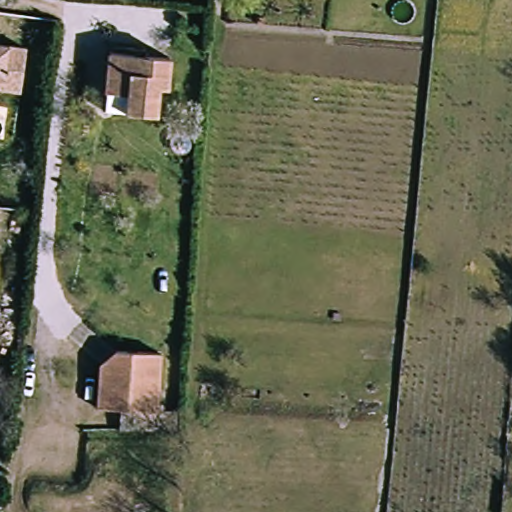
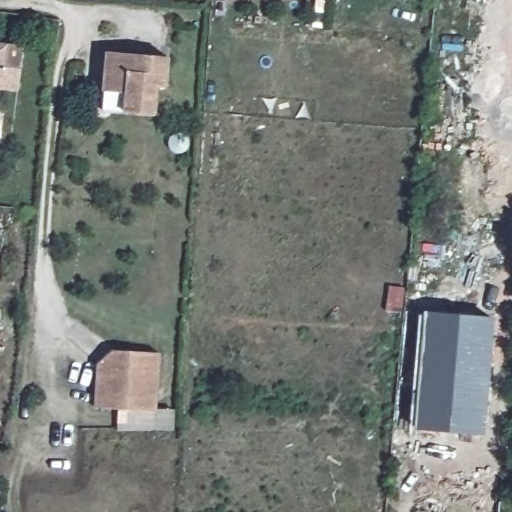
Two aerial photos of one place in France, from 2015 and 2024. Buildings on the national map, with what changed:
unchanged [(25,80),(0,78),(0,47),(29,50),(25,80)]
unchanged [(106,94),(109,50),(143,52),(145,56),(170,59),(169,87),(162,87),(160,114),(133,112),(105,110),(106,94)]
unchanged [(24,92),(0,90),(0,78),(25,80),(24,92)]
new [(486,435),(415,429),(425,310),(495,316),(486,435)]
unchanged [(125,410),(95,408),(97,371),(117,352),(153,355),(152,385),(151,412),(125,410)]

